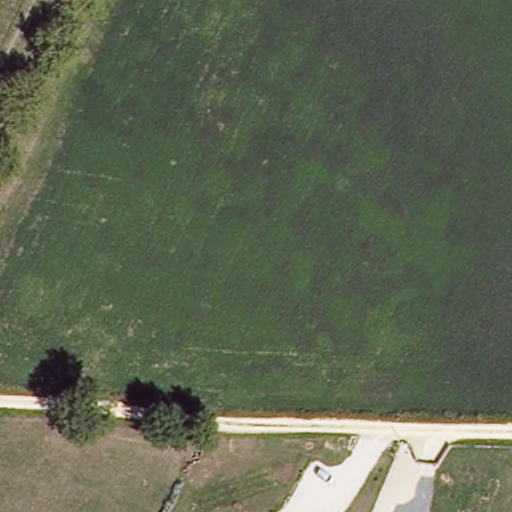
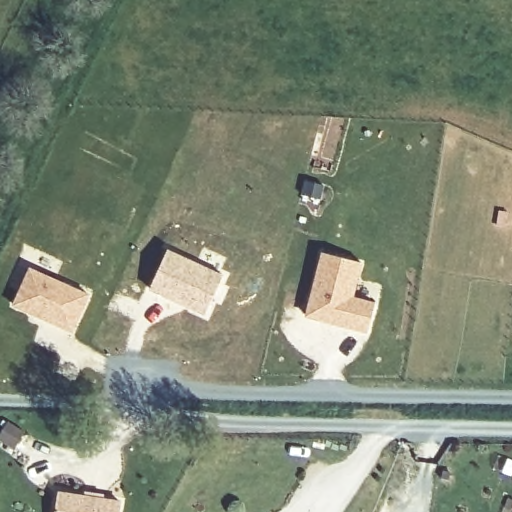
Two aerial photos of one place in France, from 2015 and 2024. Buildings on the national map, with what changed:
new [(166,247),(223,273),(203,314),(147,287),(166,247)]
new [(308,315),(324,253),(361,263),(353,299),(374,303),(368,330),(308,315)]
new [(29,265),(90,294),(72,333),(8,305),(29,265)]
new [(120,512),(54,512),(57,491),(122,500),(120,512)]

